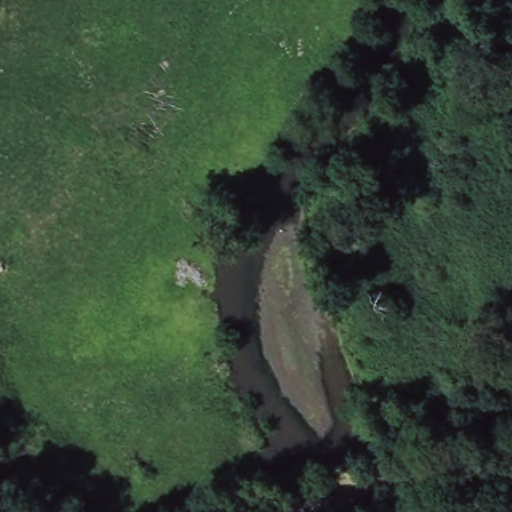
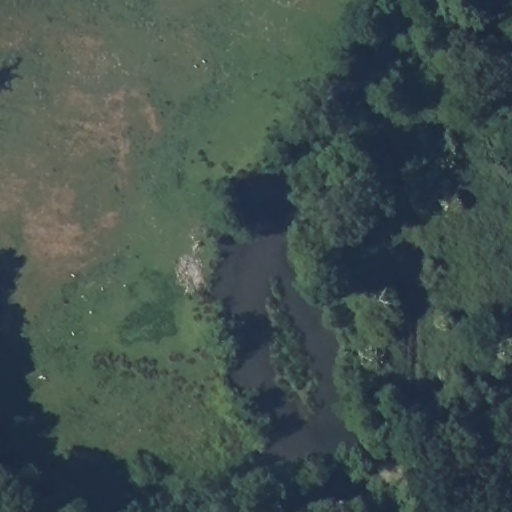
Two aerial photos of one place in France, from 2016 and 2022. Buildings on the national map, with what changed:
[]

